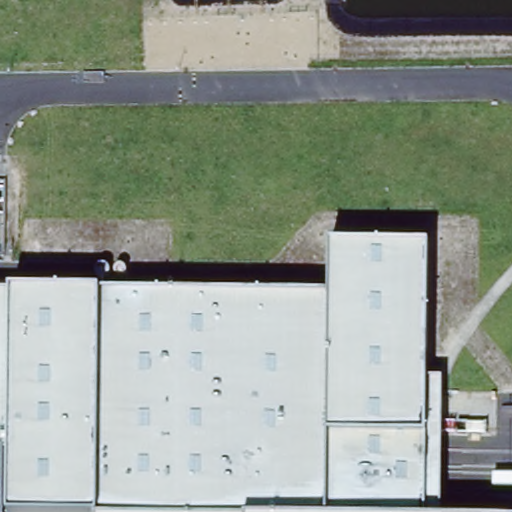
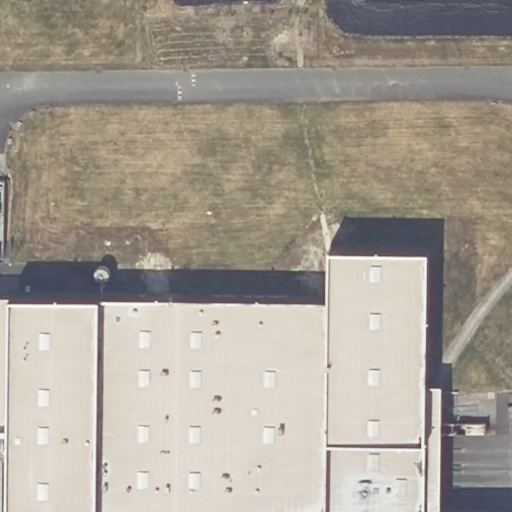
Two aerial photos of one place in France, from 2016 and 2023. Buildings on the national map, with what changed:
unchanged [(427,248),(425,381),(441,382),(440,512),(328,512),(331,295),(331,247),(427,248)]
unchanged [(101,292),(331,295),(328,512),(0,512),(0,292),(15,292),(101,292)]

